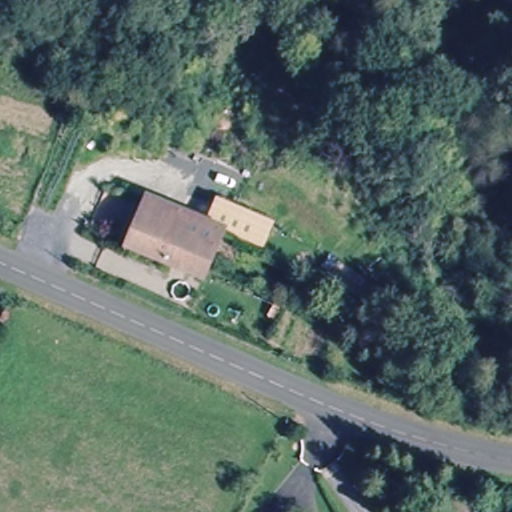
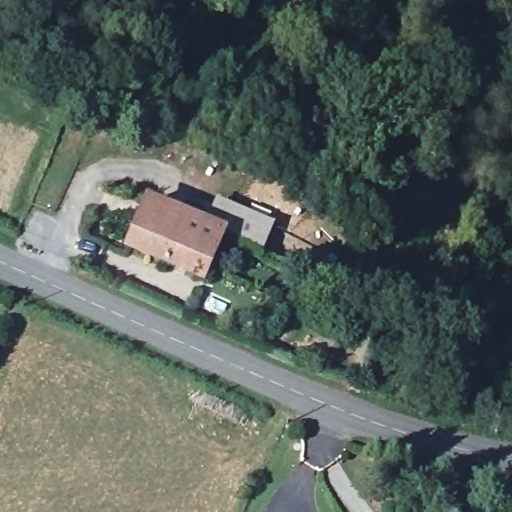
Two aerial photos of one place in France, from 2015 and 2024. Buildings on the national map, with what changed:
unchanged [(192,271),(132,244),(153,199),(225,232),(216,250),(204,277),(192,271)]

